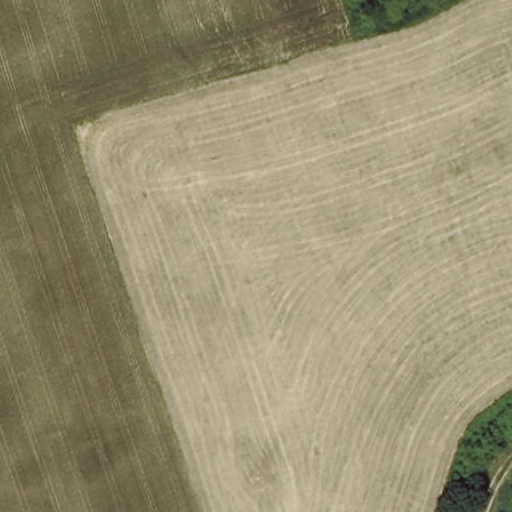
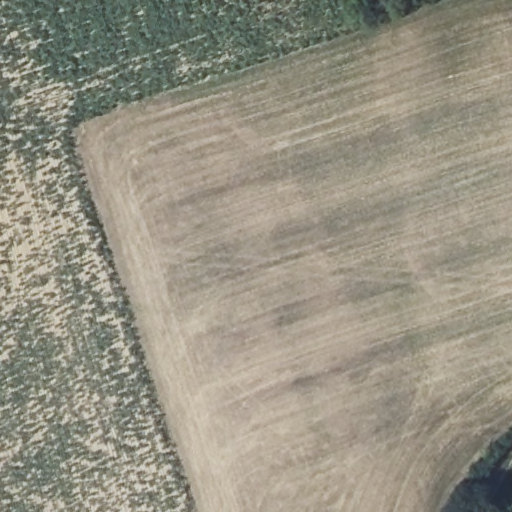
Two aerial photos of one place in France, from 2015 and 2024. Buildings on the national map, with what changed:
[]

